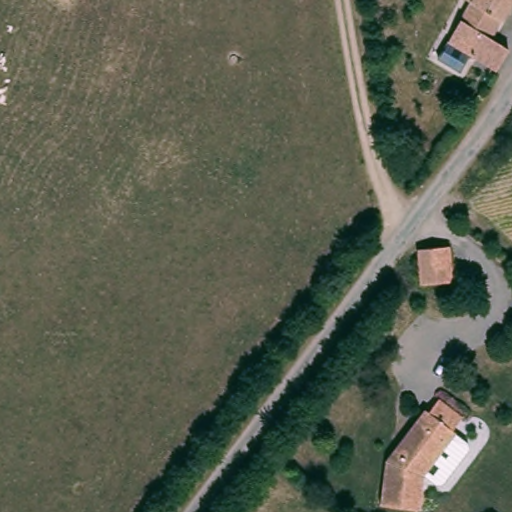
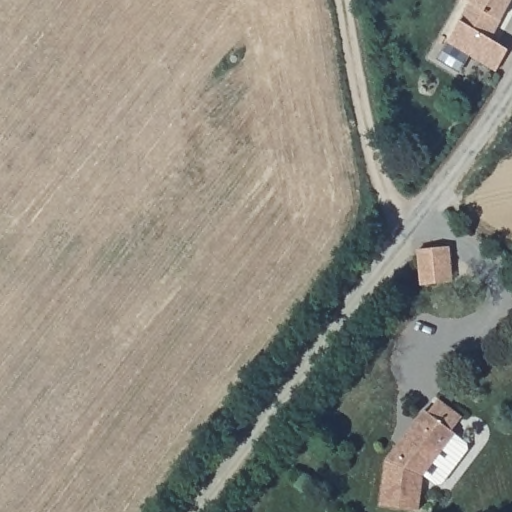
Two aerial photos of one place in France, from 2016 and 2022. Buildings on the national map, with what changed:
unchanged [(512,0),(492,40),(512,50),(512,53),(501,75),(446,48),(467,8),(456,3),(458,0),(512,0)]
unchanged [(471,262),(471,297),(438,297),(439,262),(471,262)]
unchanged [(426,468),(422,509),(380,503),(384,456),(425,409),(428,412),(441,398),(463,418),(451,430),(456,434),(426,468)]

